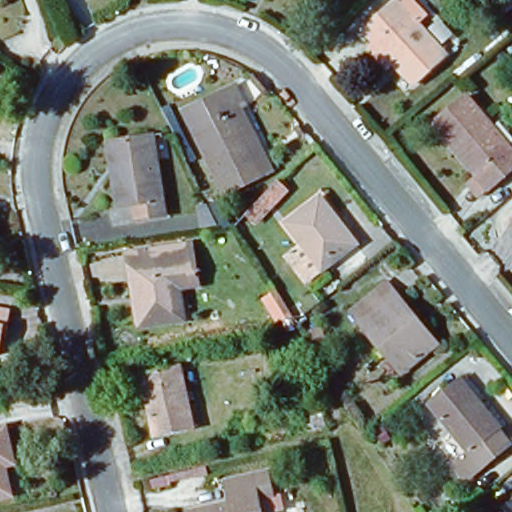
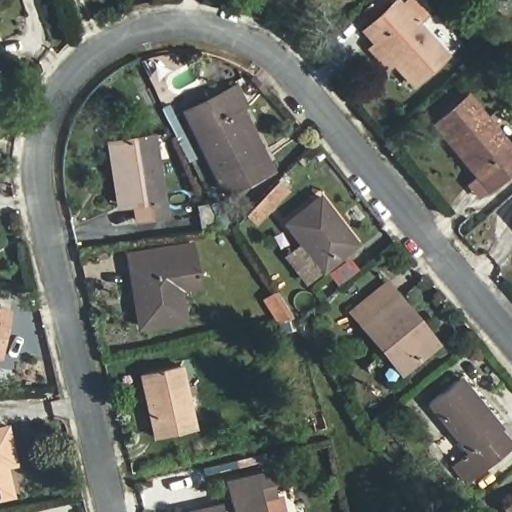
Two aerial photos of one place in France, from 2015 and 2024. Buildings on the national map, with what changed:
unchanged [(366,27),(398,0),(399,0),(445,56),(406,89),(389,68),(369,45),(375,40),(366,27)]
unchanged [(255,165),(216,184),(180,111),(228,89),(236,85),(246,105),(238,109),(231,113),(255,165)]
unchanged [(463,97),(512,157),(512,166),(485,190),(473,176),(452,152),(430,124),(463,97)]
unchanged [(107,162),(104,142),(151,135),(164,211),(134,216),(132,202),(123,204),(115,205),(107,162)]
unchanged [(288,198),(257,230),(248,220),(279,189),(288,198)]
unchanged [(287,256),(302,245),(283,221),(318,194),(356,243),(321,270),(308,281),(287,256)]
unchanged [(512,218),(512,223),(510,220),(512,218)]
unchanged [(196,277),(175,281),(183,322),(140,331),(128,270),(126,257),(147,254),(190,246),(196,277)]
unchanged [(435,353),(401,378),(351,316),(393,286),(423,326),(442,348),(435,353)]
unchanged [(11,312),(9,325),(2,323),(0,330),(0,311),(11,312)]
unchanged [(5,336),(0,357),(0,335),(5,336)]
unchanged [(177,362),(192,427),(155,436),(139,371),(177,362)]
unchanged [(460,378),(499,429),(497,431),(508,446),(468,478),(456,463),(467,453),(429,402),(460,378)]
unchanged [(0,432),(7,467),(0,468),(0,432)]
unchanged [(268,472),(273,494),(257,498),(260,512),(189,512),(229,502),(225,483),(268,472)]
unchanged [(4,499),(0,500),(0,479),(4,499)]

